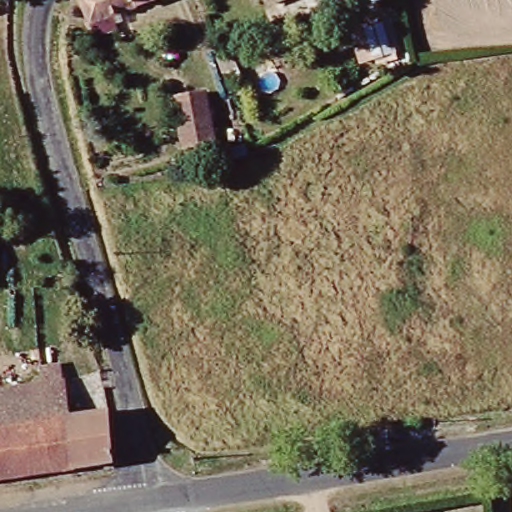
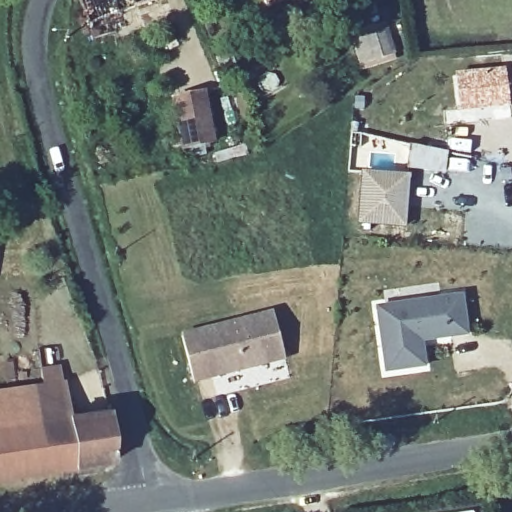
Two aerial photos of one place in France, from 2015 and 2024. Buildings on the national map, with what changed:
unchanged [(170,0),(171,3),(97,30),(90,6),(76,9),(72,0),(170,0)]
unchanged [(272,0),(284,0),(273,4),(272,0)]
demolished [(438,0),(442,21),(418,26),(413,0),(438,0)]
new [(397,60),(360,71),(349,33),(386,21),(397,60)]
demolished [(374,25),(386,21),(394,50),(382,54),(374,25)]
new [(509,106),(458,112),(454,74),(504,68),(509,106)]
unchanged [(217,143),(187,150),(176,102),(207,96),(217,143)]
new [(404,227),(360,223),(363,173),(409,176),(404,227)]
new [(466,238),(425,237),(426,216),(467,218),(466,238)]
new [(422,368),(384,373),(376,310),(462,299),(466,337),(450,339),(419,343),(422,368)]
new [(272,313),(283,359),(192,380),(182,335),(272,313)]
unchanged [(72,419),(108,415),(114,464),(0,480),(0,392),(67,383),(72,419)]

